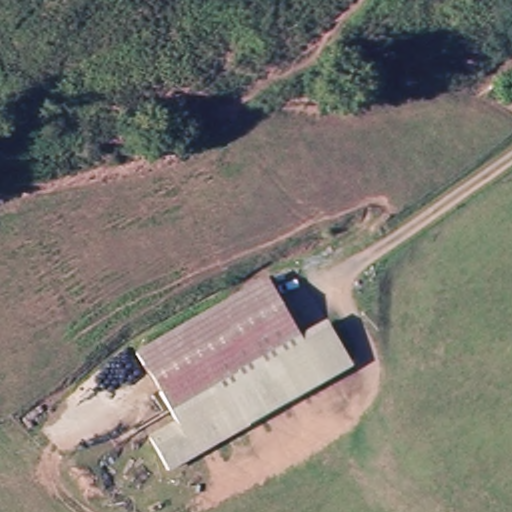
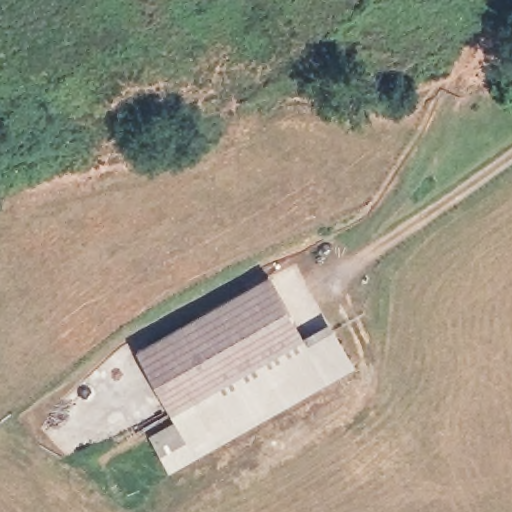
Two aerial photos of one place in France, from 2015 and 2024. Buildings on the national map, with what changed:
unchanged [(167,411),(151,380),(135,351),(267,280),(292,324),(300,340),(167,411)]
unchanged [(191,454),(173,421),(167,411),(300,340),(303,346),(330,332),(351,369),(191,454)]
unchanged [(191,454),(164,469),(146,435),(173,421),(191,454)]

